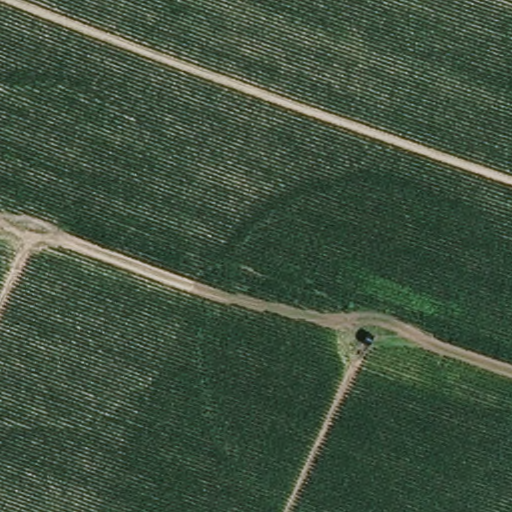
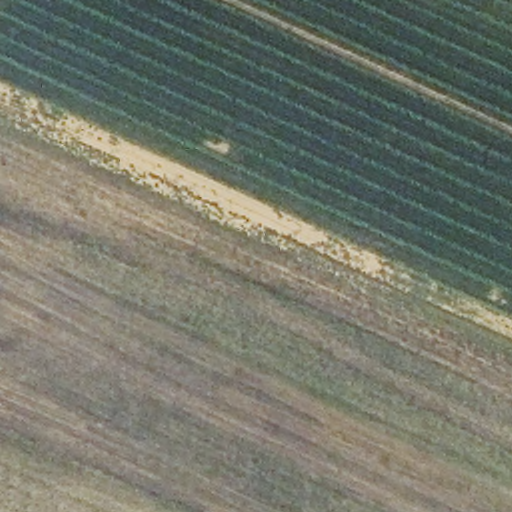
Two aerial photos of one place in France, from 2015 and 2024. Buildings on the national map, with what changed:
[]

